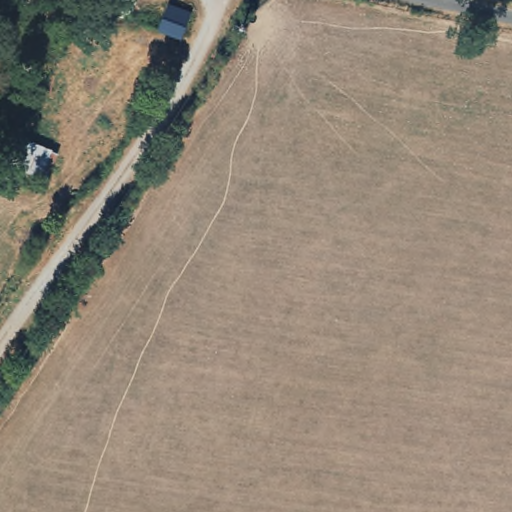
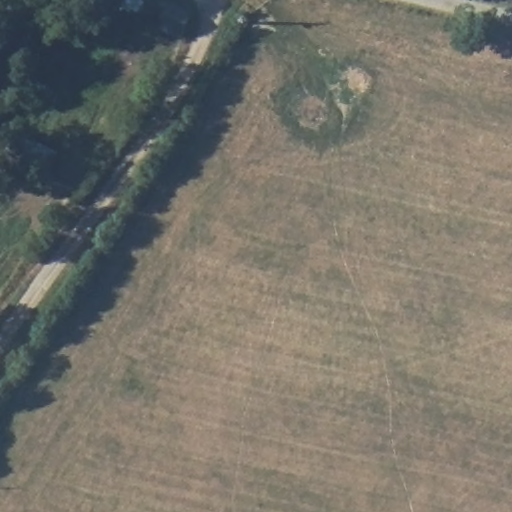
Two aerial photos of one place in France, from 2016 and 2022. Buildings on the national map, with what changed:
unchanged [(187,19),(180,40),(156,22),(166,1),(187,19)]
unchanged [(42,182),(0,166),(0,154),(11,135),(55,152),(42,182)]

